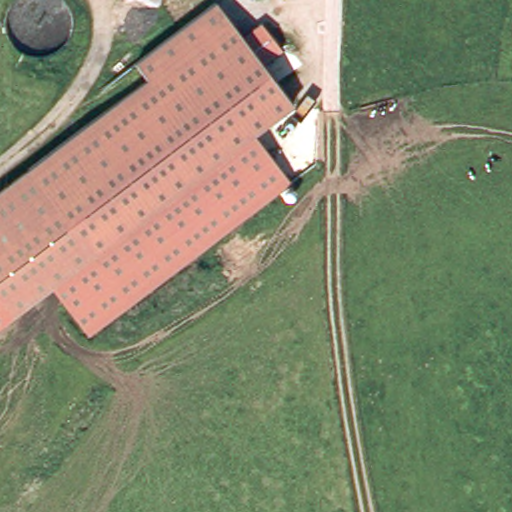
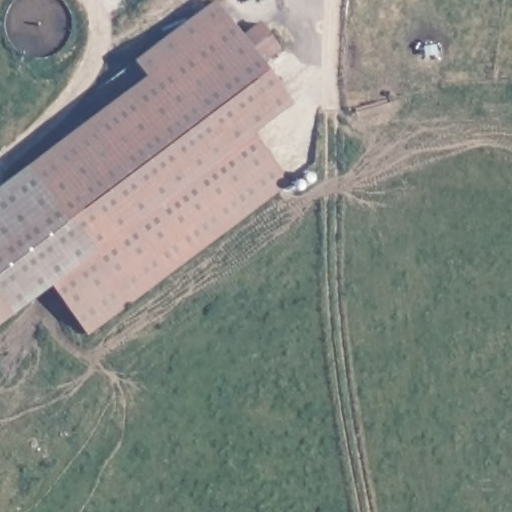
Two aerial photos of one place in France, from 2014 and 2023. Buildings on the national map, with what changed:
unchanged [(148,76),(135,57),(215,0),(219,0),(293,104),(86,252),(25,165),(148,76)]
unchanged [(251,134),(289,181),(286,184),(296,195),(286,202),(278,192),(263,205),(88,336),(51,287),(0,324),(0,185),(25,165),(86,252),(251,134)]

